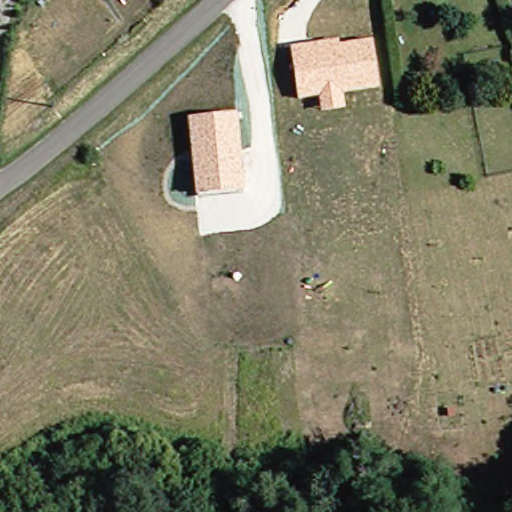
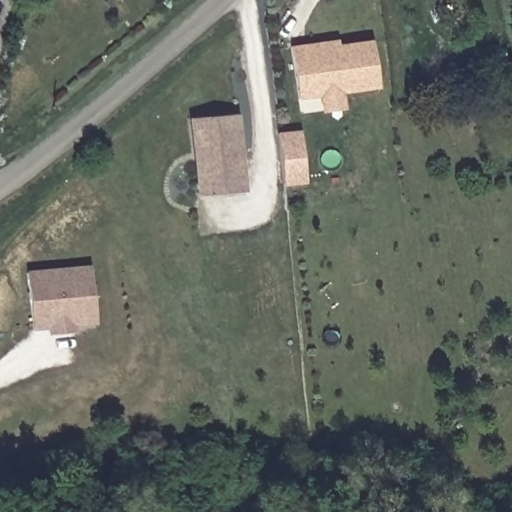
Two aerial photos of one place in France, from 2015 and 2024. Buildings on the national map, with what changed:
unchanged [(379,90),(343,95),(345,109),(320,112),(318,97),(298,100),(290,46),(337,40),(338,45),(372,40),(379,90)]
unchanged [(237,112),(245,190),(196,196),(187,118),(237,112)]
new [(283,186),(277,133),(301,130),(306,184),(283,186)]
new [(96,325),(76,326),(76,332),(50,334),(49,327),(34,330),(29,271),(91,265),(96,325)]

